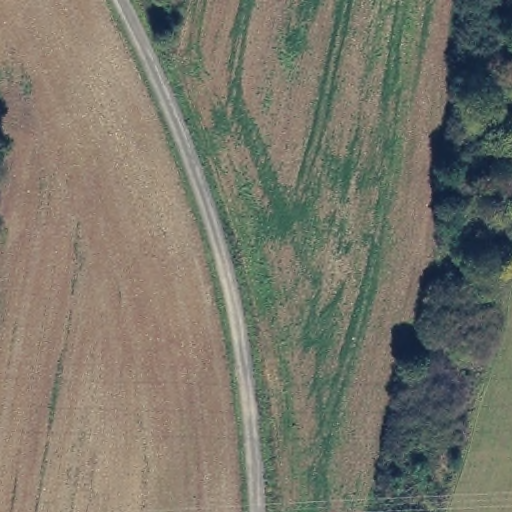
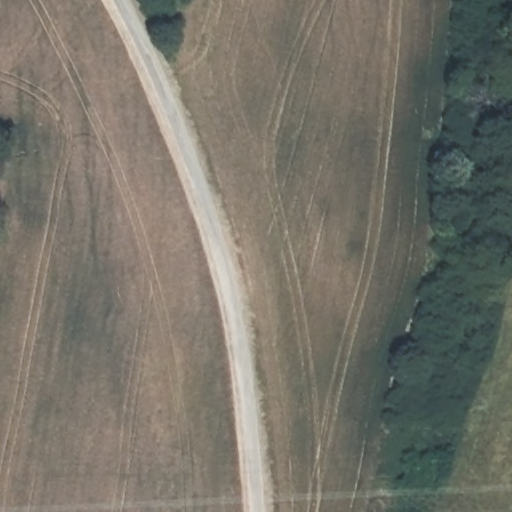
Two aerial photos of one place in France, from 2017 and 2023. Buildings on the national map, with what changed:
[]

